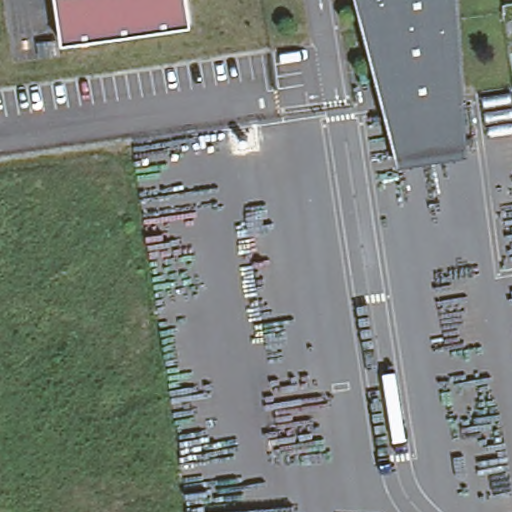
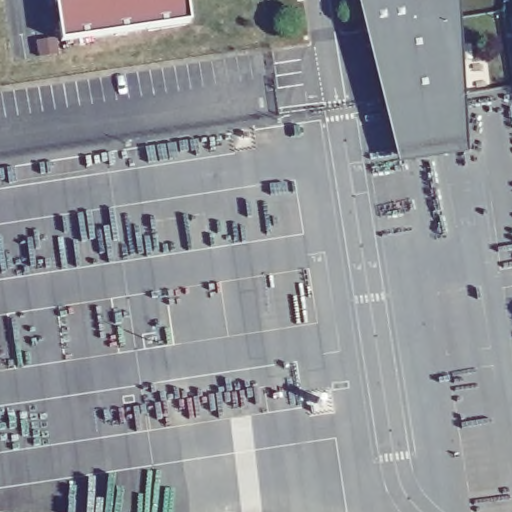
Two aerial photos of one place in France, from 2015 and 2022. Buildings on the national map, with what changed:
unchanged [(191,26),(62,46),(55,0),(187,0),(191,26)]
unchanged [(457,17),(445,19),(457,95),(450,96),(390,106),(378,30),(366,31),(362,0),(454,0),(457,17)]
unchanged [(450,96),(457,95),(463,144),(457,144),(398,154),(390,106),(450,96)]

